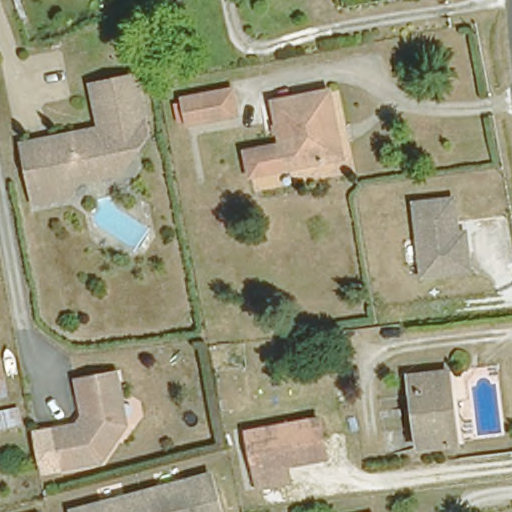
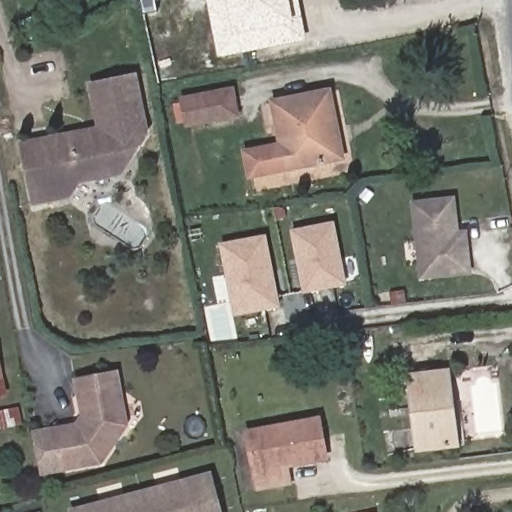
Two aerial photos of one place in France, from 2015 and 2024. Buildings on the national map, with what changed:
new [(207,0),(299,0),(307,41),(219,57),(207,0)]
unchanged [(93,113),(83,75),(126,63),(136,102),(93,113)]
unchanged [(177,102),(232,92),(236,116),(183,125),(177,102)]
unchanged [(289,144),(282,102),(333,92),(340,129),(332,131),(340,163),(282,172),(267,175),(261,150),(278,145),(289,144)]
unchanged [(136,102),(140,118),(115,162),(112,161),(99,157),(79,163),(74,173),(66,185),(29,196),(15,139),(69,124),(68,121),(93,113),(136,102)]
unchanged [(446,198),(450,224),(443,225),(445,233),(458,232),(461,271),(414,274),(408,201),(446,198)]
new [(334,221),(345,286),(302,294),(290,230),(334,221)]
new [(219,243),(265,234),(277,309),(233,317),(219,243)]
unchanged [(416,447),(408,386),(406,368),(442,364),(445,382),(453,441),(416,447)]
unchanged [(111,373),(117,401),(110,409),(112,422),(121,428),(96,465),(55,474),(48,433),(80,427),(71,381),(111,373)]
unchanged [(280,477),(257,482),(247,434),(281,427),(280,419),(314,413),(323,452),(287,459),(291,475),(280,477)]
unchanged [(224,512),(66,512),(65,508),(212,468),(224,512)]

